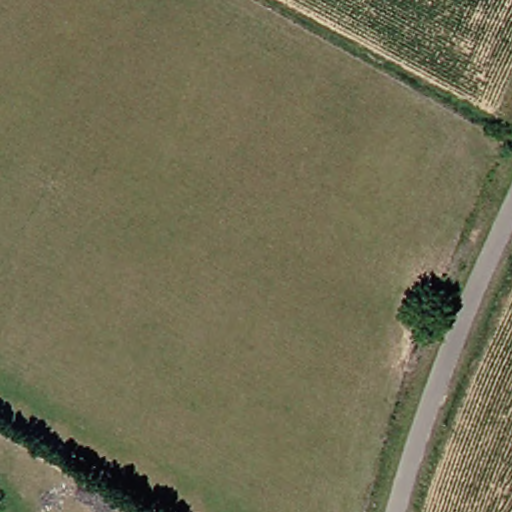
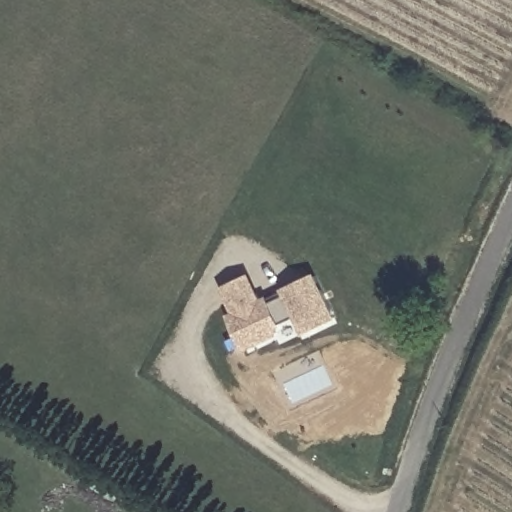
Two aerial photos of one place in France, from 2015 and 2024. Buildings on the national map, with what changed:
new [(230,305),(222,288),(246,278),(254,295),(257,303),(263,301),(265,305),(284,297),(282,293),(312,281),(330,323),(300,336),(293,320),(275,328),(272,336),(242,349),(227,316),(234,313),(230,305)]

